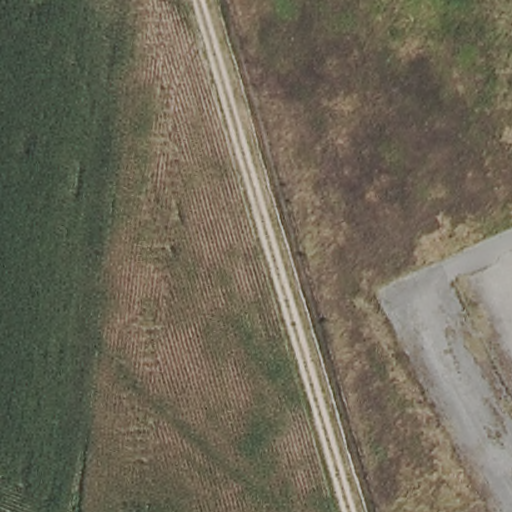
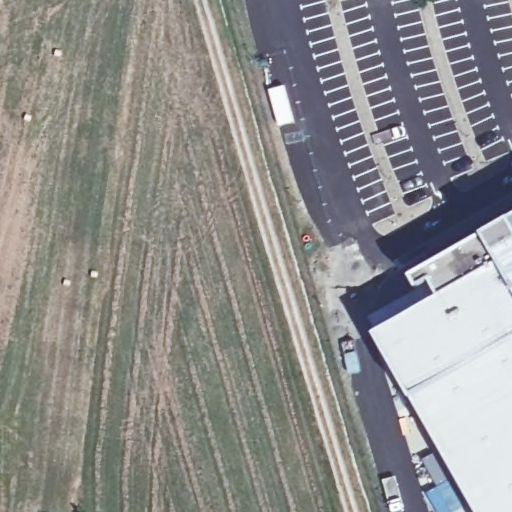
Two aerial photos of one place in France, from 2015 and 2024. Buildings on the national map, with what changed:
new [(417,399),(380,334),(505,262),(512,274),(512,512),(481,512),(417,399)]

